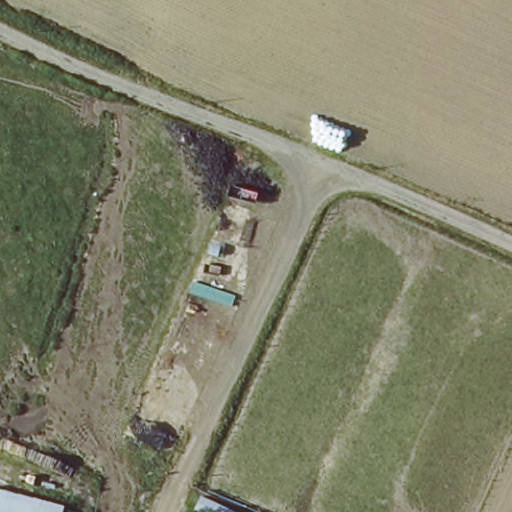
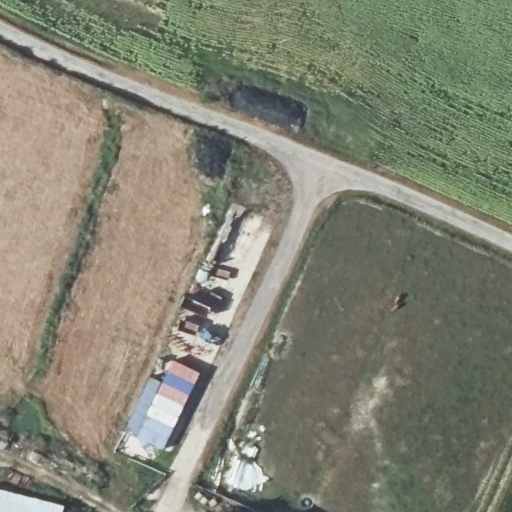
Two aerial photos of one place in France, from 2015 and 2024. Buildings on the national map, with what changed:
new [(161,439),(166,427),(143,416),(153,392),(148,388),(146,392),(143,390),(149,376),(161,381),(172,359),(200,372),(185,406),(167,441),(161,439)]
unchanged [(59,512),(0,512),(0,489),(60,505),(59,512)]

